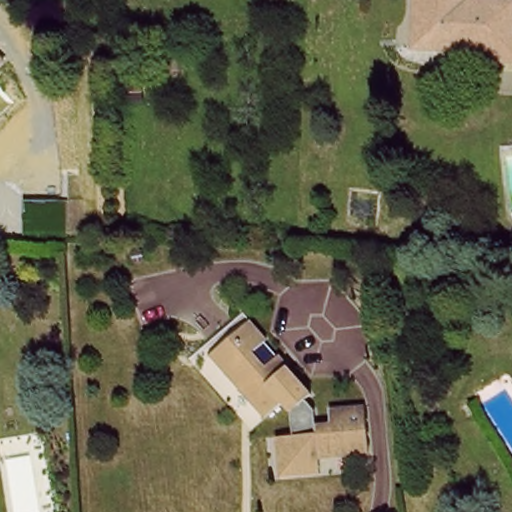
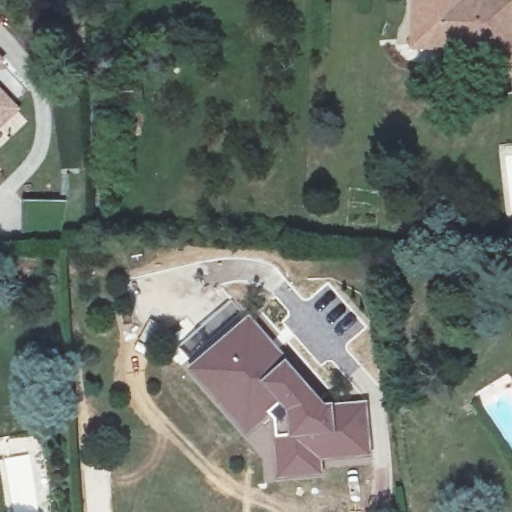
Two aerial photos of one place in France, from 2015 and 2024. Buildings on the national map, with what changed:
unchanged [(512,26),(512,56),(479,54),(479,45),(414,43),(414,0),(511,0),(509,26),(512,26)]
unchanged [(0,160),(0,145),(8,152),(0,160)]
unchanged [(241,316),(272,346),(268,352),(278,361),(284,354),(310,381),(304,386),(315,396),(317,418),(331,416),(330,398),(368,394),(374,444),(324,451),(326,465),(285,469),(281,428),(298,424),(296,408),(288,400),(268,419),(249,399),(254,394),(239,378),(233,384),(203,354),(241,316)]

